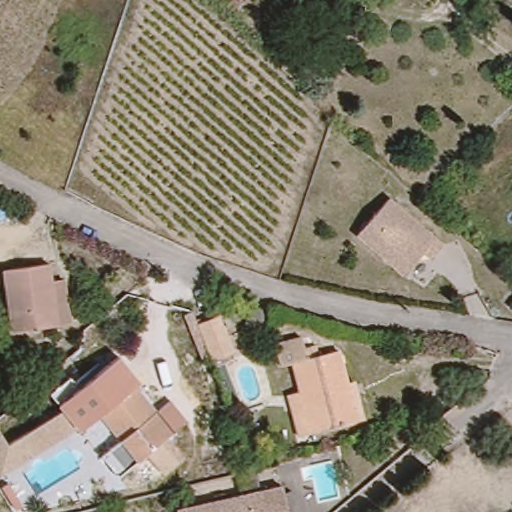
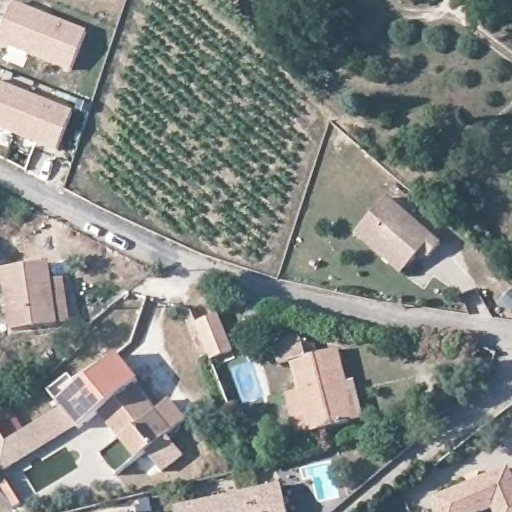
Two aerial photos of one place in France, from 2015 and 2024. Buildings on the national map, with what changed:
unchanged [(233,11),(218,0),(241,0),(233,11)]
new [(0,44),(0,37),(14,3),(87,32),(70,72),(0,44)]
new [(73,112),(57,153),(0,130),(0,83),(73,112)]
unchanged [(407,271),(370,241),(359,233),(369,221),(389,196),(410,213),(444,241),(433,254),(426,248),(420,256),(407,271)]
unchanged [(7,331),(3,273),(41,268),(43,286),(60,285),(62,326),(45,328),(7,331)]
unchanged [(189,317),(197,315),(198,321),(222,312),(238,352),(211,360),(203,362),(189,317)]
unchanged [(369,418),(352,423),(300,437),(287,396),(299,393),(290,363),(277,366),(272,345),(299,337),(304,357),(330,350),(341,386),(358,381),(369,418)]
unchanged [(132,383),(98,415),(80,430),(78,427),(0,475),(0,432),(7,443),(62,411),(57,404),(49,393),(70,376),(79,386),(116,356),(141,383),(136,387),(132,383)]
unchanged [(98,416),(98,415),(132,383),(155,408),(167,397),(186,417),(123,477),(104,457),(122,440),(98,416)]
unchanged [(166,435),(184,455),(164,474),(147,454),(166,435)]
new [(486,512),(439,512),(435,503),(507,469),(512,480),(512,512),(494,512),(493,509),(486,512)]
new [(466,482),(477,477),(479,482),(469,487),(466,482)]
unchanged [(291,512),(187,512),(280,480),(291,512)]

